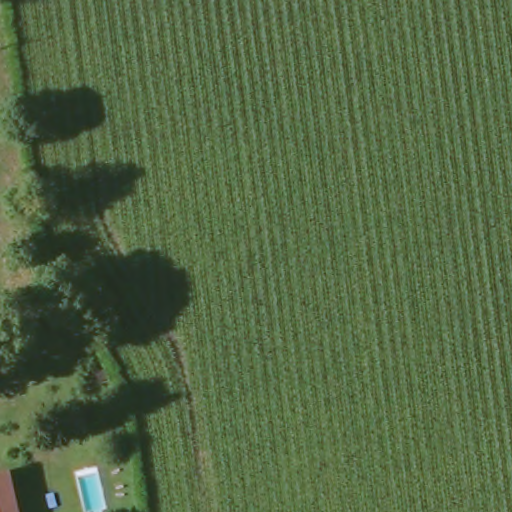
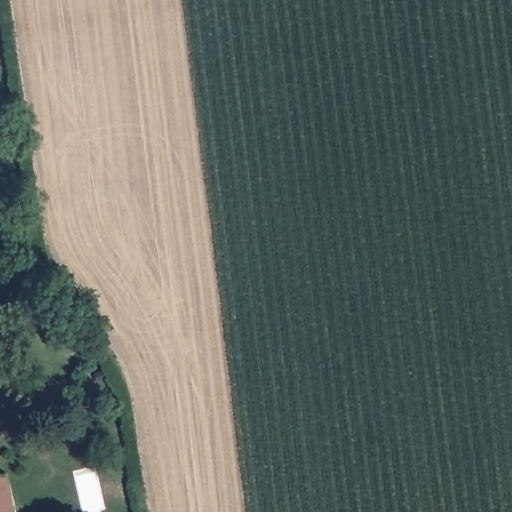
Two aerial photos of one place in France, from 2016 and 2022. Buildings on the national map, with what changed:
unchanged [(10,472),(20,512),(0,512),(0,474),(10,472)]

